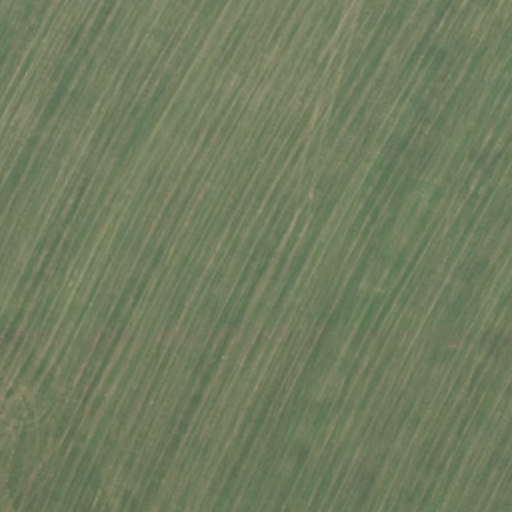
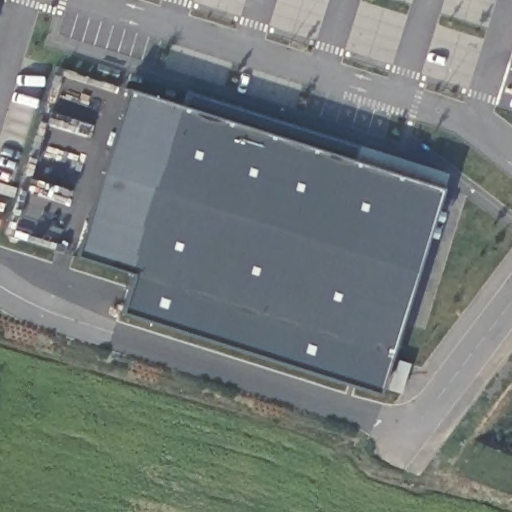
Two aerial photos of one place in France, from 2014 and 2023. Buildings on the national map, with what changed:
new [(127,87),(182,106),(187,90),(448,173),(440,190),(378,393),(118,313),(131,275),(72,255),(127,87)]

